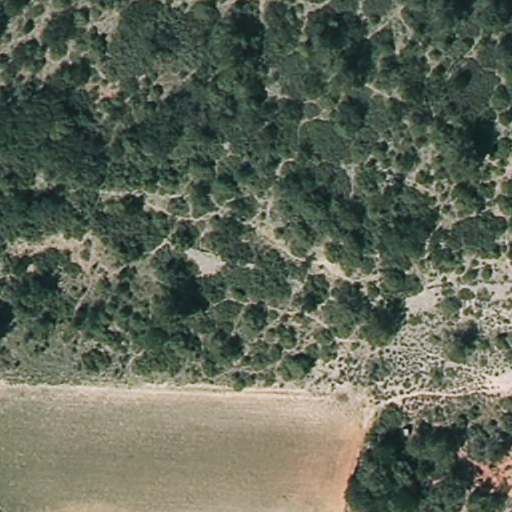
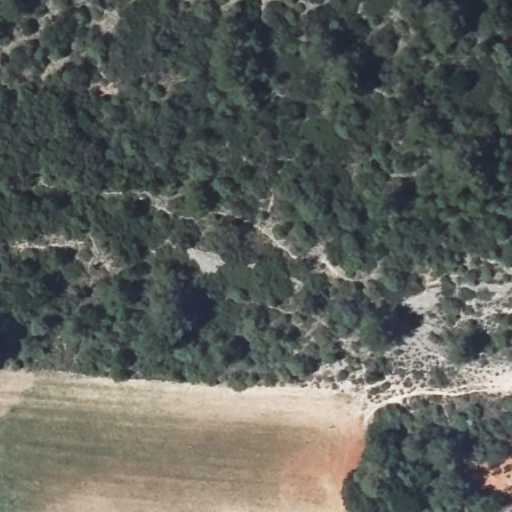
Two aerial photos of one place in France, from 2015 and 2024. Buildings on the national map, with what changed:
[]

